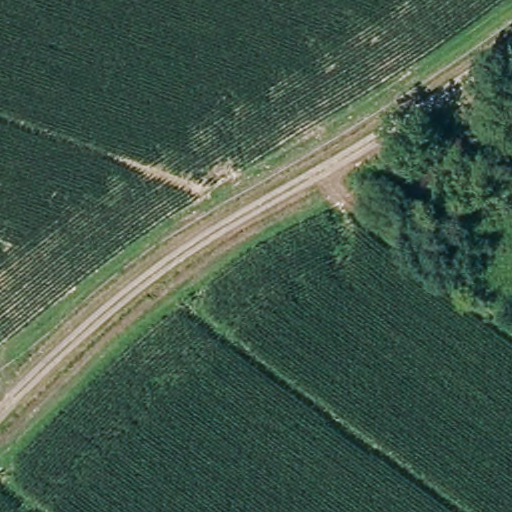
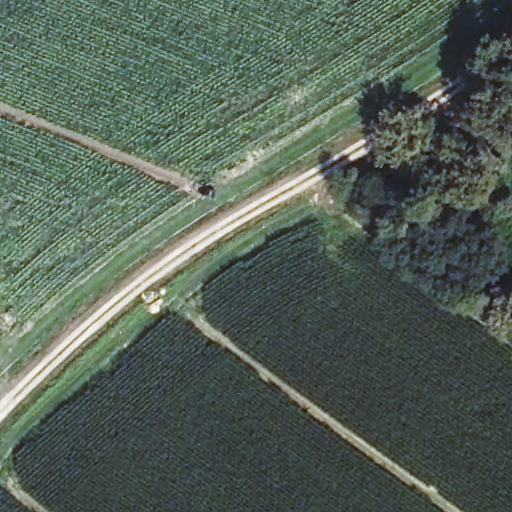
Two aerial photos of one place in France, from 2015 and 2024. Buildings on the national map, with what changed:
[]

